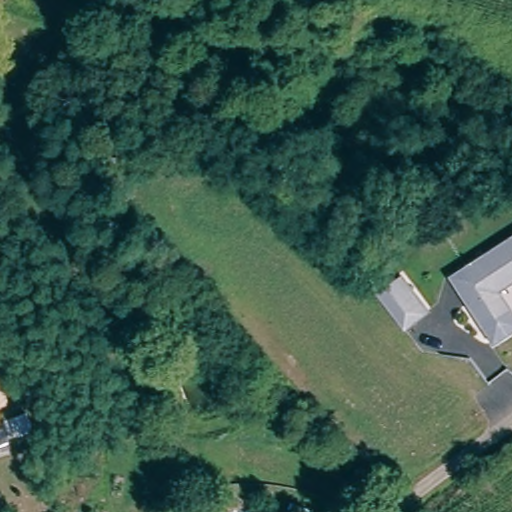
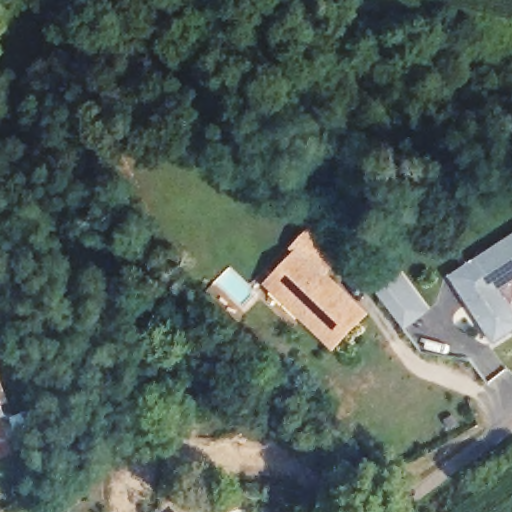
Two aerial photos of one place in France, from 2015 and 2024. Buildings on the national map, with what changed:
unchanged [(512,234),(512,282),(502,288),(512,303),(512,333),(493,344),(448,275),(512,234)]
new [(301,247),(370,315),(333,352),(265,286),(301,247)]
unchanged [(376,294),(402,274),(430,311),(405,330),(376,294)]
unchanged [(2,395),(0,396),(0,388),(2,395)]
unchanged [(13,426),(19,444),(5,449),(0,436),(0,430),(13,426)]

